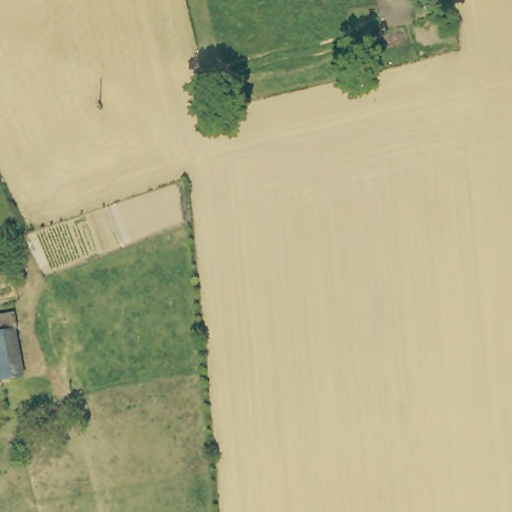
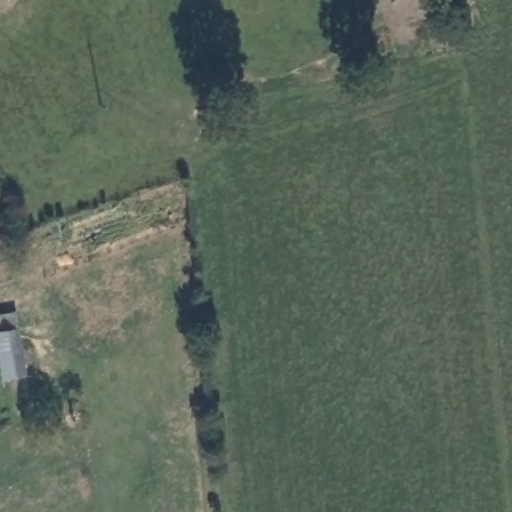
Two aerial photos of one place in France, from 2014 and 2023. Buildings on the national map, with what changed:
unchanged [(11,322),(21,379),(0,382),(0,323),(11,322)]

